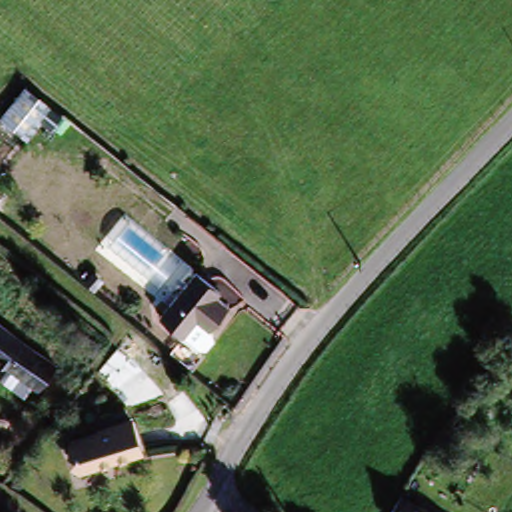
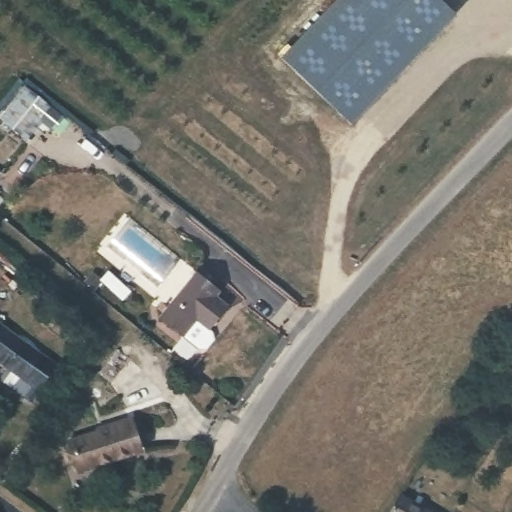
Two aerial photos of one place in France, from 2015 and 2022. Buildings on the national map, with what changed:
new [(338,0),(441,0),(455,14),(352,123),(283,57),(338,0)]
unchanged [(27,135),(3,116),(28,86),(51,106),(27,135)]
unchanged [(217,289),(211,296),(222,303),(205,325),(209,334),(201,343),(195,345),(157,313),(195,270),(217,289)]
unchanged [(55,367),(37,391),(0,364),(0,327),(55,367)]
unchanged [(79,468),(70,442),(101,432),(100,427),(131,416),(132,422),(141,448),(79,468)]
unchanged [(419,512),(373,512),(387,491),(419,512)]

